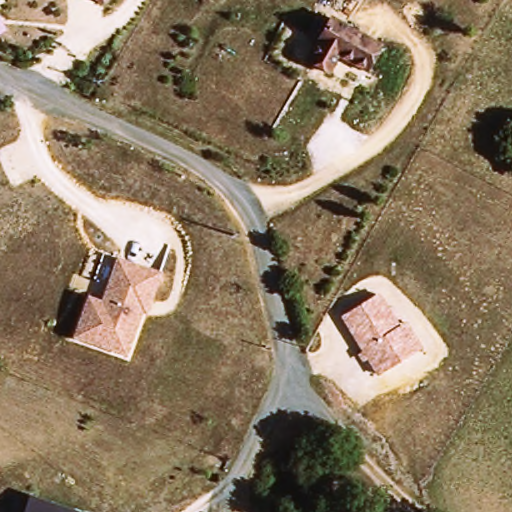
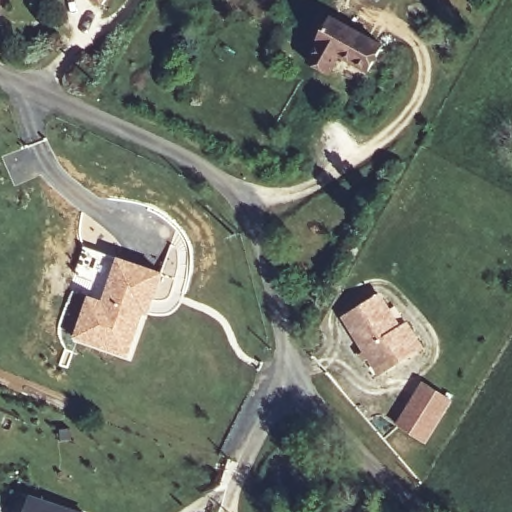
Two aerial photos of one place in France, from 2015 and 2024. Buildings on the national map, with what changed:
unchanged [(96,0),(106,0),(103,4),(96,0)]
unchanged [(382,42),(368,69),(339,54),(330,72),(308,60),(320,38),(307,33),(318,13),(330,19),(332,16),(382,42)]
unchanged [(104,301),(117,256),(165,273),(151,316),(145,314),(130,358),(75,336),(88,295),(104,301)]
unchanged [(382,293),(400,326),(411,319),(427,349),(380,377),(370,360),(365,363),(360,353),(365,350),(343,315),(382,293)]
new [(450,400),(425,443),(395,425),(420,383),(450,400)]
unchanged [(32,493),(86,512),(26,512),(32,493)]

